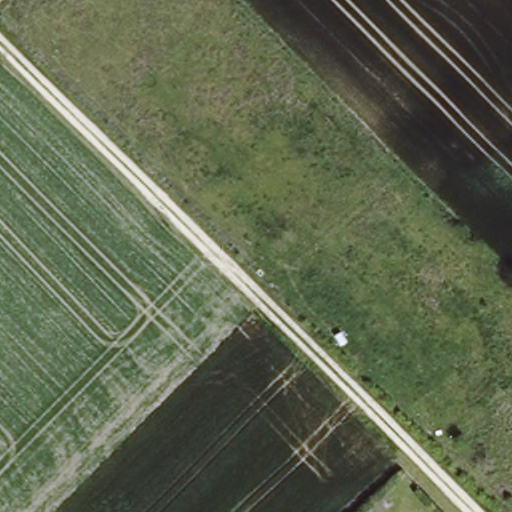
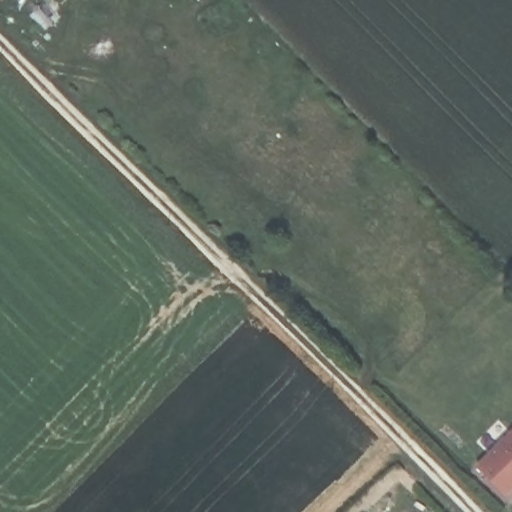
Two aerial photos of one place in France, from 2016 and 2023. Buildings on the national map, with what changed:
new [(512,433),(512,492),(509,496),(479,466),(512,433)]

